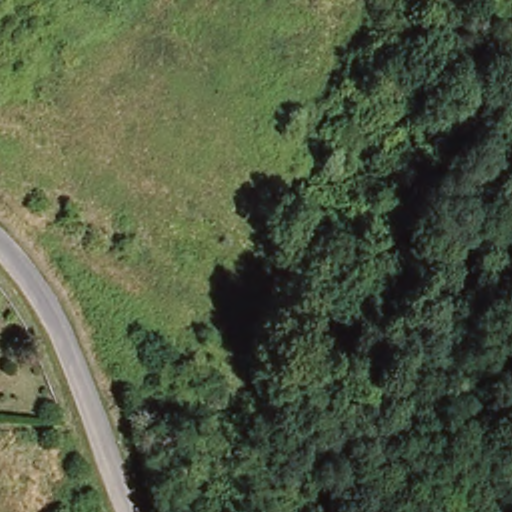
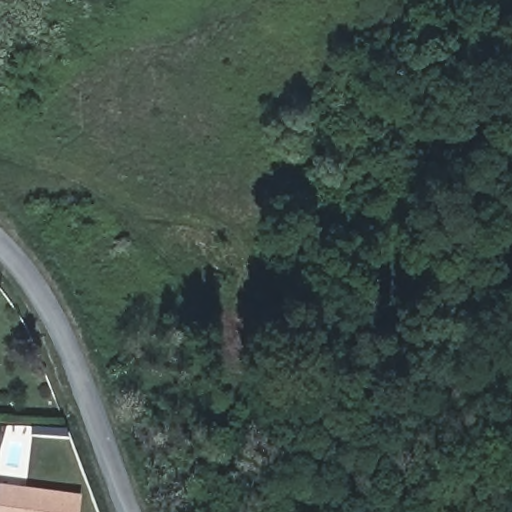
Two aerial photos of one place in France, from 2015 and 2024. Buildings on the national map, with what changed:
new [(78,512),(0,512),(0,483),(81,493),(78,512)]

